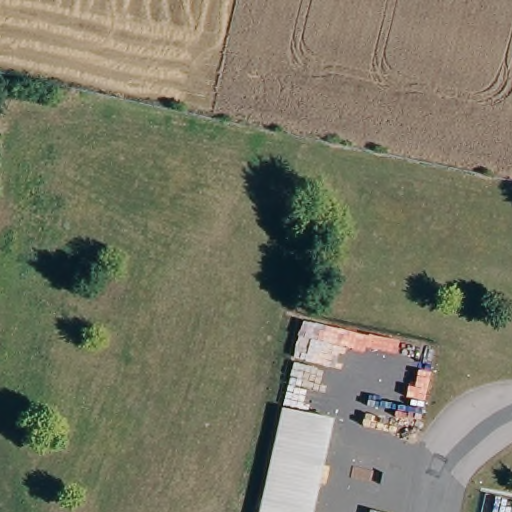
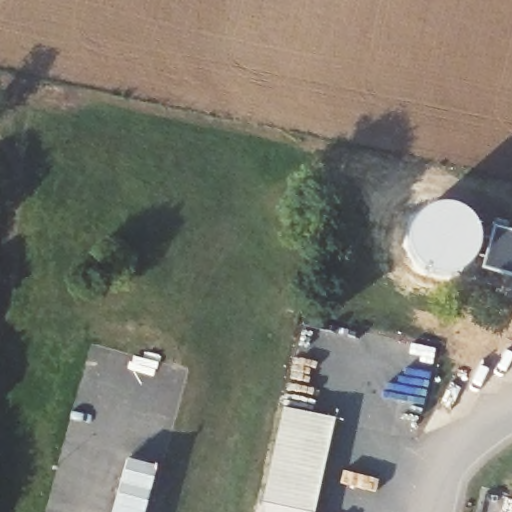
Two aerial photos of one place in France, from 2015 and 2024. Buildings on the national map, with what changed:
new [(483,268),(495,227),(512,232),(512,276),(483,268)]
unchanged [(279,405),(328,416),(308,511),(259,501),(279,405)]
new [(144,512),(113,512),(127,460),(155,468),(144,512)]
unchanged [(308,511),(308,512),(257,512),(259,501),(308,511)]

